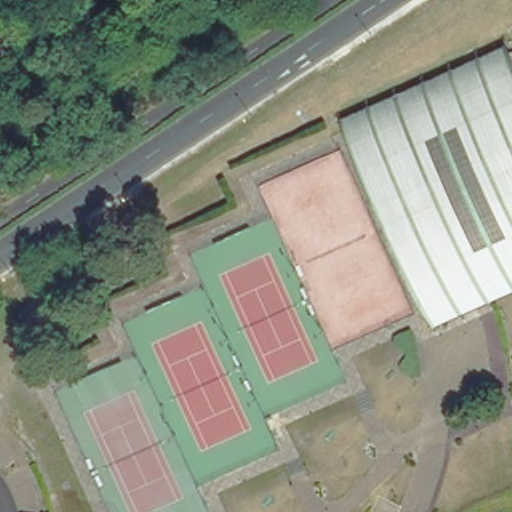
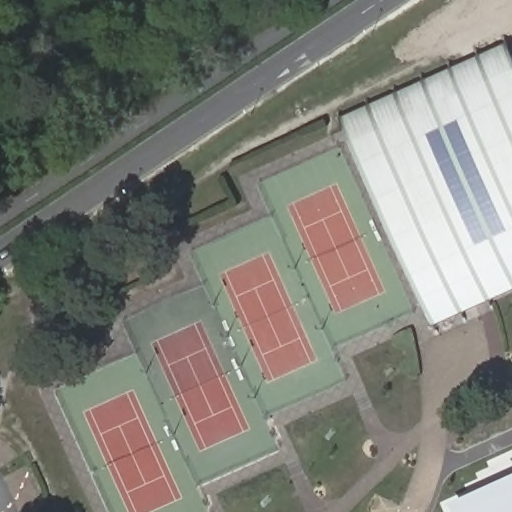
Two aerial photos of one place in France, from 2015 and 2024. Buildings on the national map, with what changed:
unchanged [(512,65),(512,291),(431,328),(345,133),(510,60),(512,65)]
new [(512,512),(454,512),(451,506),(512,478),(512,512)]

